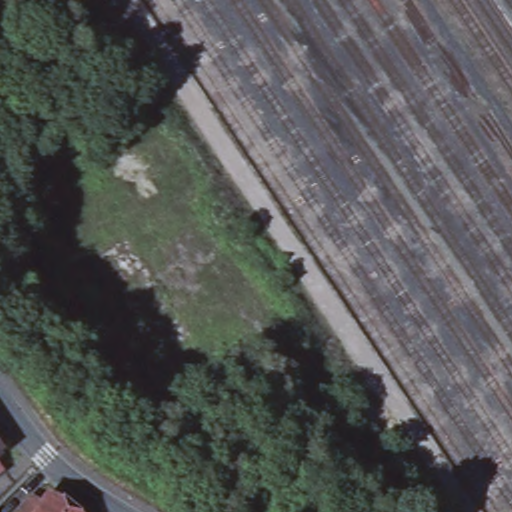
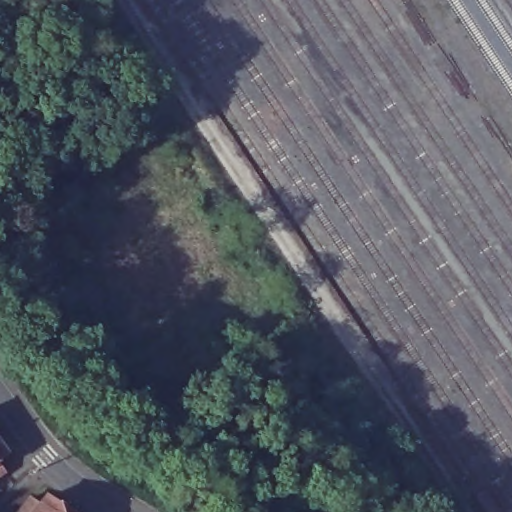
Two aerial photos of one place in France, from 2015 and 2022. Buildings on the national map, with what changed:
unchanged [(0,455),(0,445),(5,452),(0,455)]
unchanged [(0,471),(0,461),(5,467),(0,471)]
unchanged [(30,491),(40,498),(46,490),(73,512),(17,512),(15,510),(30,491)]

